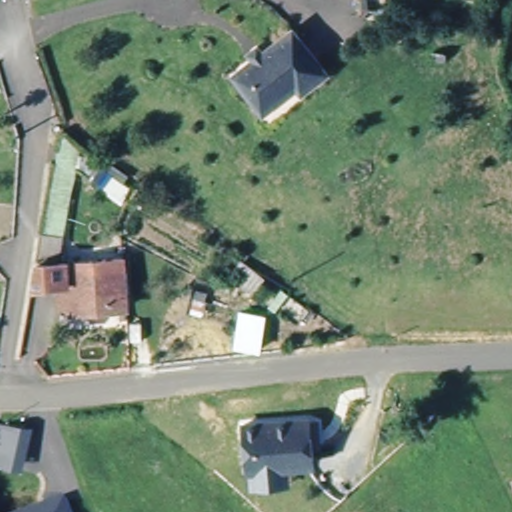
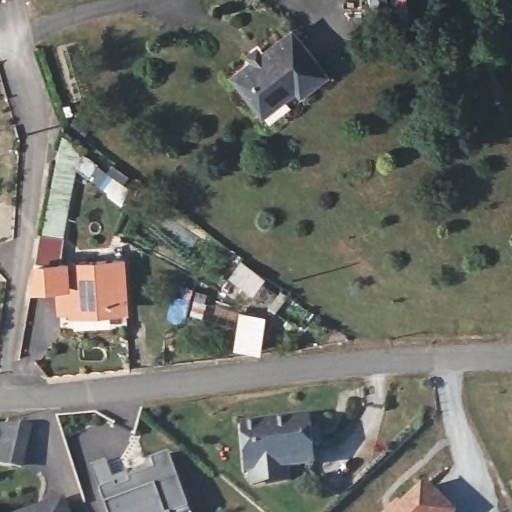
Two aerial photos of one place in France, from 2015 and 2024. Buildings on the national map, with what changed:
unchanged [(322,73),(304,90),(296,85),(261,112),(231,74),(291,30),(322,73)]
unchanged [(59,130),(110,166),(114,157),(133,172),(129,179),(133,187),(122,204),(79,167),(65,236),(40,236),(59,130)]
unchanged [(65,236),(66,263),(94,263),(96,277),(123,276),(126,311),(68,309),(65,285),(34,285),(40,236),(65,236)]
unchanged [(275,315),(270,356),(235,351),(242,305),(275,315)]
unchanged [(320,422),(320,439),(313,439),(314,459),(248,466),(245,420),(309,412),(309,416),(319,416),(320,422)]
unchanged [(0,465),(0,445),(5,423),(29,428),(21,469),(0,465)]
new [(91,467),(106,462),(111,480),(127,476),(128,480),(155,471),(151,461),(169,455),(188,510),(189,512),(108,512),(91,467)]
new [(426,480),(456,512),(389,512),(426,480)]
unchanged [(60,495),(65,512),(12,512),(60,495)]

